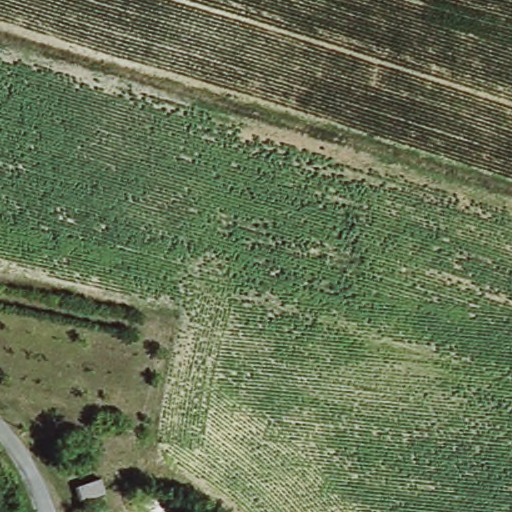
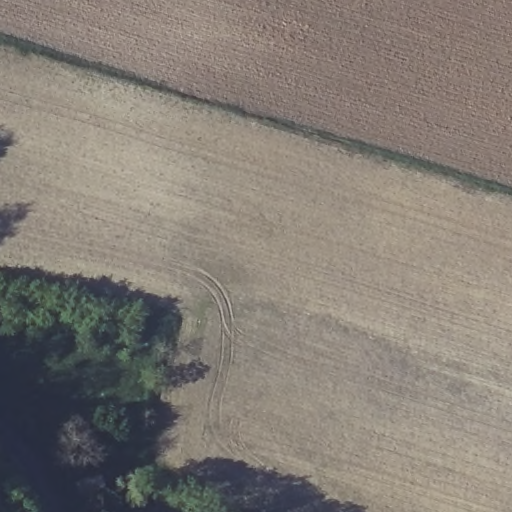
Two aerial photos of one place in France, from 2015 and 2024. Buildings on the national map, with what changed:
unchanged [(85,501),(82,484),(107,483),(109,500),(85,501)]

